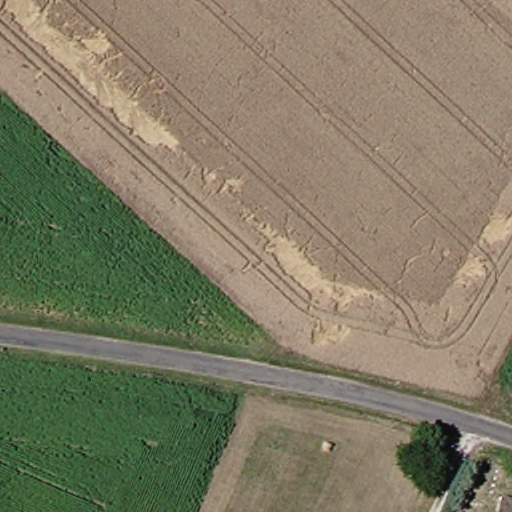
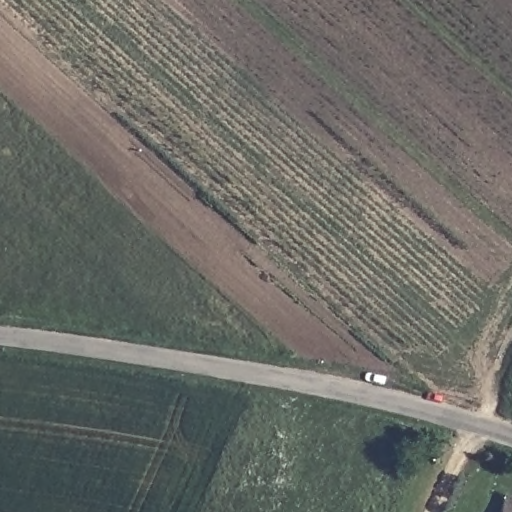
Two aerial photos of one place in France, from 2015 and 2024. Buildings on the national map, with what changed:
unchanged [(512,506),(512,512),(510,512),(512,506)]

